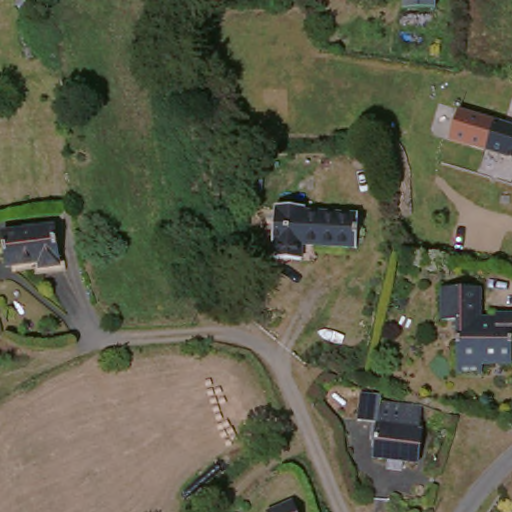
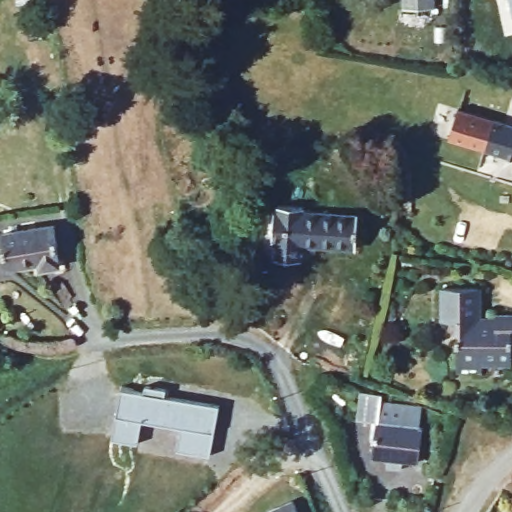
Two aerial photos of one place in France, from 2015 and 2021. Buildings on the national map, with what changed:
unchanged [(433,10),(403,11),(402,0),(432,0),(433,10)]
unchanged [(454,140),(464,108),(512,124),(512,159),(454,140)]
unchanged [(306,209),(361,210),(360,245),(305,244),(304,259),(278,258),(278,256),(279,240),(276,240),(276,211),(276,208),(279,208),(279,203),(306,204),(306,206),(306,209)]
unchanged [(59,268),(39,270),(38,264),(6,268),(3,234),(54,227),(59,268)]
unchanged [(486,284),(486,314),(503,314),(503,309),(512,310),(512,358),(488,358),(488,366),(463,366),(463,315),(447,315),(448,283),(486,284)]
new [(121,387),(143,391),(145,384),(166,389),(164,396),(219,406),(211,456),(176,450),(181,426),(141,419),(136,443),(112,436),(121,387)]
unchanged [(428,427),(423,463),(408,461),(407,470),(391,468),(391,459),(378,458),(379,441),(374,441),(376,423),(361,422),(365,393),(386,396),(386,402),(426,406),(424,427),(428,427)]
unchanged [(274,512),(273,508),(299,497),(305,512),(274,512)]

